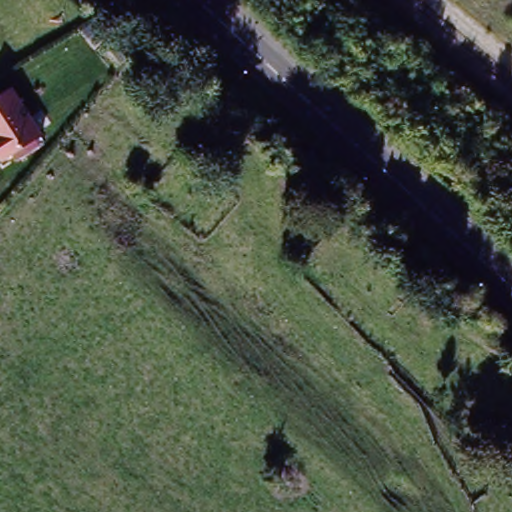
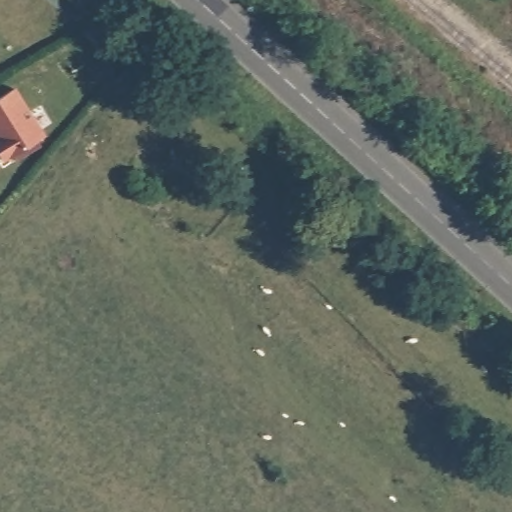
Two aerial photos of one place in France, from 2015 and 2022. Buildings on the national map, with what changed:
unchanged [(48,135),(10,161),(0,149),(0,94),(14,85),(48,135)]

